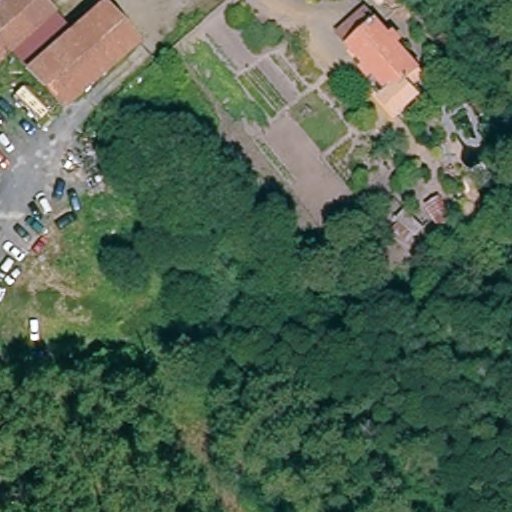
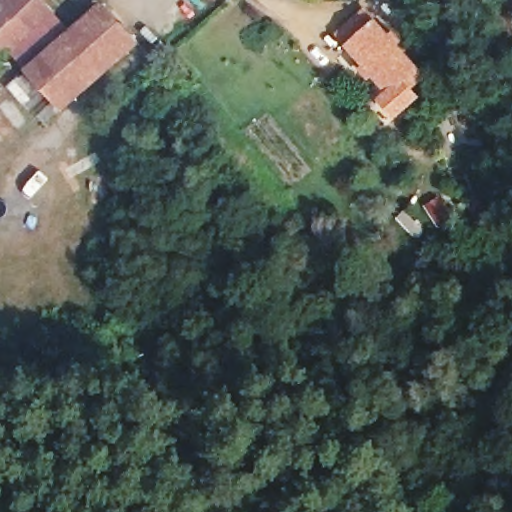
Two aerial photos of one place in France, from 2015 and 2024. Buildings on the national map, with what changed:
unchanged [(56,19),(15,54),(0,68),(0,15),(17,0),(40,0),(56,19)]
unchanged [(106,10),(141,49),(67,113),(33,75),(73,39),(106,10)]
unchanged [(355,17),(413,83),(400,95),(407,106),(384,123),(371,106),(377,100),(327,40),(355,17)]
unchanged [(56,19),(73,39),(33,75),(15,54),(56,19)]

